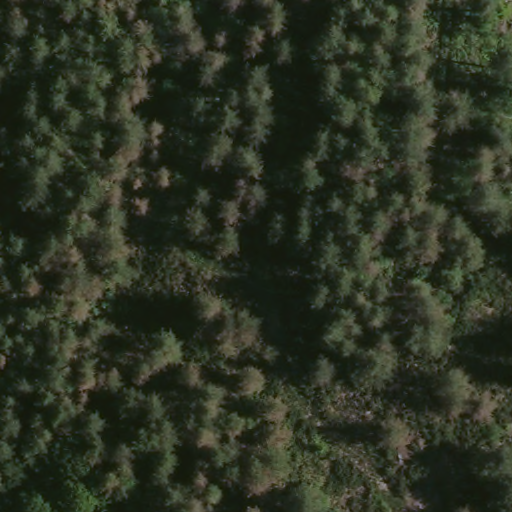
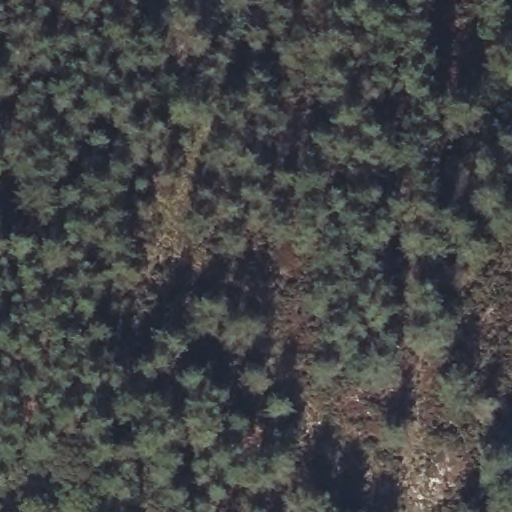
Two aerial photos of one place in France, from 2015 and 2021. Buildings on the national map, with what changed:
[]

